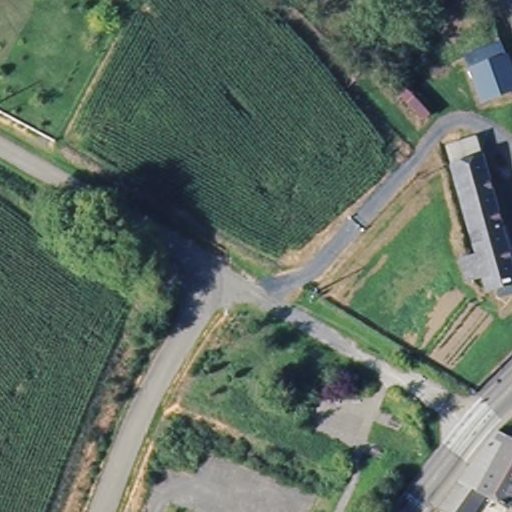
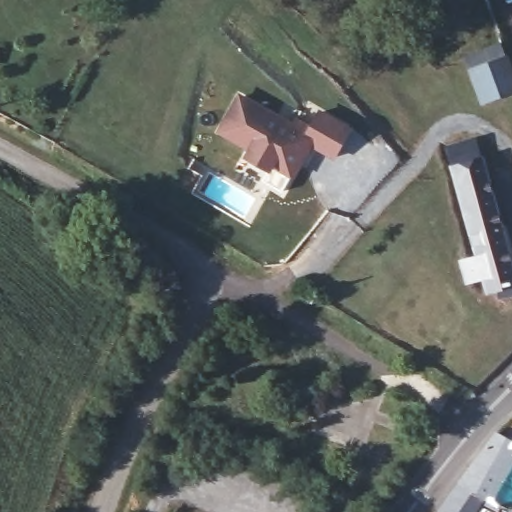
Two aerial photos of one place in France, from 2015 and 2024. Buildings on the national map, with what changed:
unchanged [(505,52),(512,70),(512,99),(490,110),(473,66),(505,52)]
new [(236,159),(241,150),(210,132),(229,99),(281,128),(282,129),(279,133),(298,144),(279,177),(270,193),(251,182),(258,171),(236,159)]
new [(282,129),(281,128),(285,122),(299,131),(308,114),(338,132),(322,159),(298,144),(279,133),(282,129)]
unchanged [(512,263),(512,293),(497,297),(494,283),(487,285),(483,270),(467,273),(462,251),(477,247),(453,157),(448,142),(478,134),(512,263)]
unchanged [(493,437),(512,446),(512,502),(506,512),(484,501),(476,512),(439,512),(493,437)]

